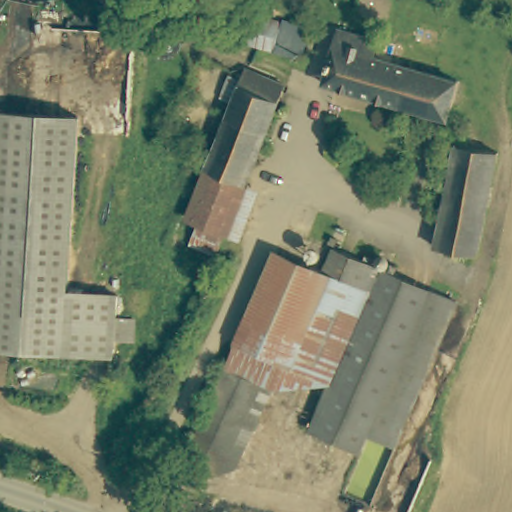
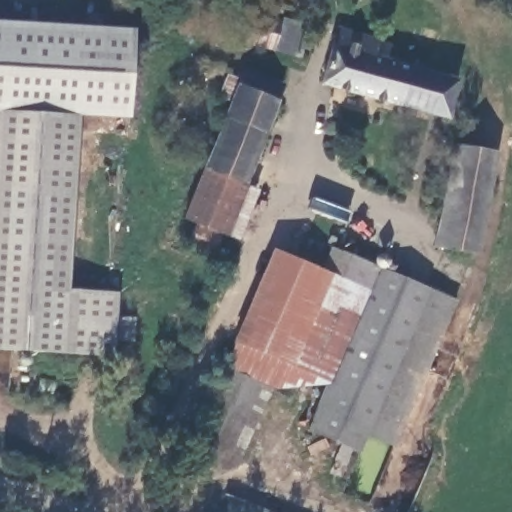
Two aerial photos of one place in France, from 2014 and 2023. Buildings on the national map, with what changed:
unchanged [(265,15),(269,0),(298,0),(296,11),(317,16),(306,56),(284,51),(292,23),(265,15)]
unchanged [(251,11),(265,15),(292,23),(284,51),(240,44),(251,11)]
new [(0,20),(136,28),(131,118),(81,115),(0,110),(0,20)]
unchanged [(346,25),(375,35),(372,50),(426,65),(465,77),(451,119),(318,79),(331,29),(334,22),(339,23),(346,25)]
unchanged [(288,79),(247,180),(207,164),(234,96),(224,90),(232,69),(248,64),(288,79)]
unchanged [(70,290),(66,351),(0,348),(0,110),(81,115),(70,290)]
unchanged [(482,258),(475,257),(438,248),(447,206),(422,200),(428,177),(450,183),(460,146),(504,155),(482,258)]
unchanged [(188,214),(207,164),(247,180),(251,183),(232,231),(217,226),(188,214)]
unchanged [(293,383),(276,373),(319,266),(329,241),(375,261),(327,379),(293,383)]
unchanged [(186,458),(178,454),(216,363),(266,245),(275,248),(319,266),(276,373),(271,386),(233,477),(186,458)]
unchanged [(357,446),(307,424),(327,379),(375,261),(427,282),(453,293),(395,439),(365,429),(357,446)]
unchanged [(134,339),(118,338),(116,355),(66,351),(70,290),(120,293),(119,316),(136,317),(134,339)]

